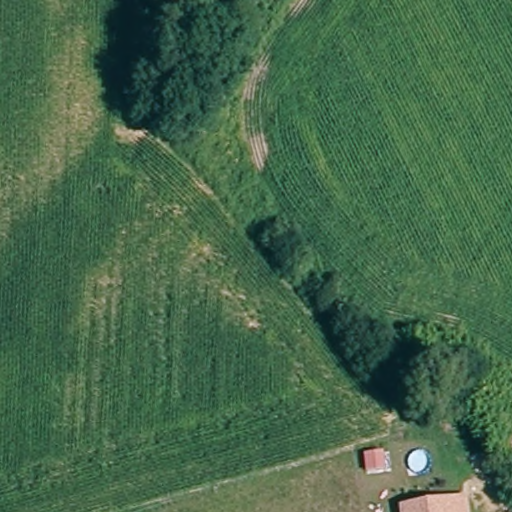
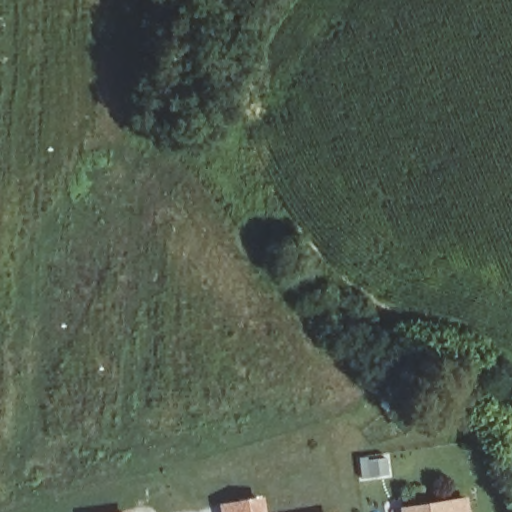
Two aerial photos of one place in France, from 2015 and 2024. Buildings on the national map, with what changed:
unchanged [(386,465),(369,467),(367,452),(385,450),(386,465)]
new [(217,506),(264,497),(266,512),(219,512),(217,506)]
unchanged [(468,501),(470,512),(406,512),(406,510),(453,503),(468,501)]
new [(130,510),(130,512),(118,512),(130,510)]

